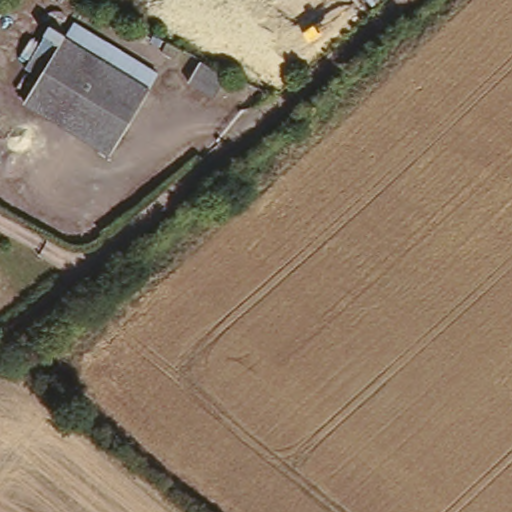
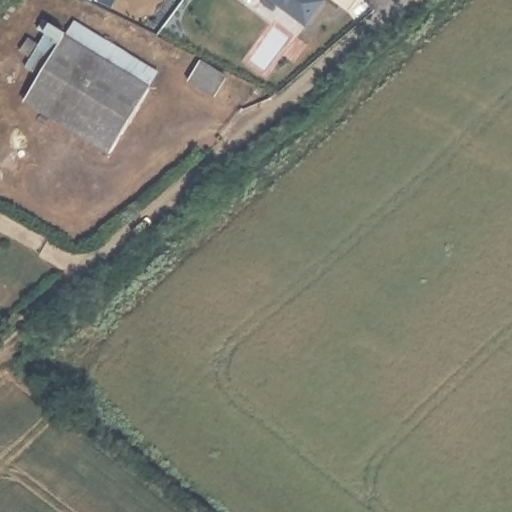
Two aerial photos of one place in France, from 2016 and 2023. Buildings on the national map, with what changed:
new [(322,2),(306,23),(280,4),(284,0),(321,0),(322,2)]
unchanged [(19,97),(55,37),(39,29),(45,19),(60,28),(67,19),(152,70),(145,84),(105,148),(19,97)]
unchanged [(199,62),(226,78),(215,97),(188,81),(199,62)]

